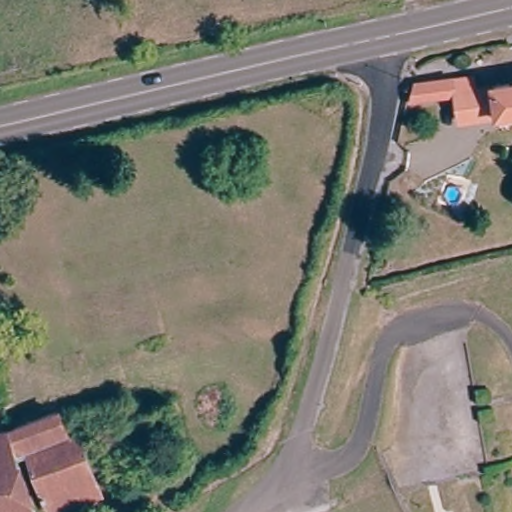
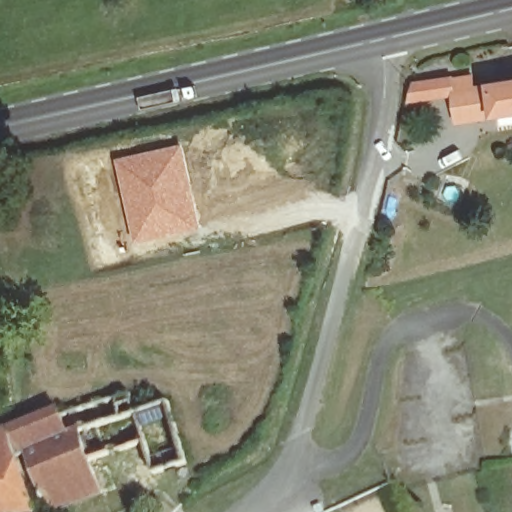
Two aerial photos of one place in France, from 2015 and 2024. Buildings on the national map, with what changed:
unchanged [(409,102),(413,86),(449,81),(469,78),(471,91),(512,86),(512,115),(457,123),(453,96),(409,102)]
new [(183,141),(202,227),(136,242),(115,157),(183,141)]
unchanged [(31,456),(22,460),(12,431),(63,413),(71,434),(78,432),(100,496),(54,512),(49,512),(31,456)]
unchanged [(7,433),(9,432),(12,431),(22,460),(40,512),(0,512),(0,434),(7,433)]

